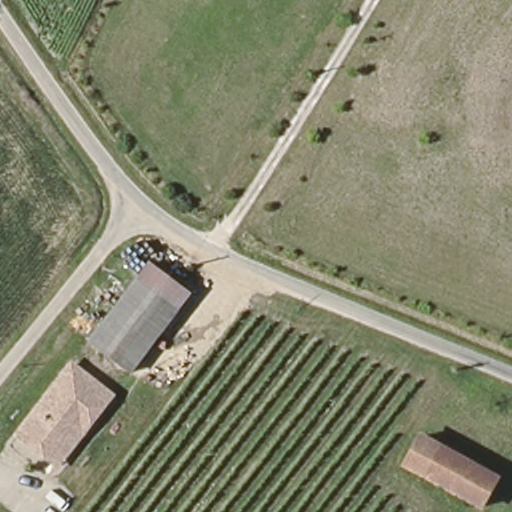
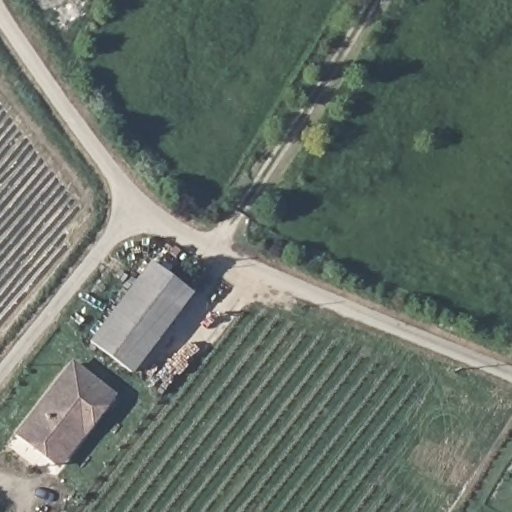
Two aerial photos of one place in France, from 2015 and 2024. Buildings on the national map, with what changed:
unchanged [(188,302),(142,364),(100,331),(146,269),(188,302)]
unchanged [(52,454),(23,431),(76,360),(118,392),(90,427),(63,462),(52,454)]
demolished [(408,467),(424,439),(498,479),(483,509),(464,498),(456,494),(408,467)]

